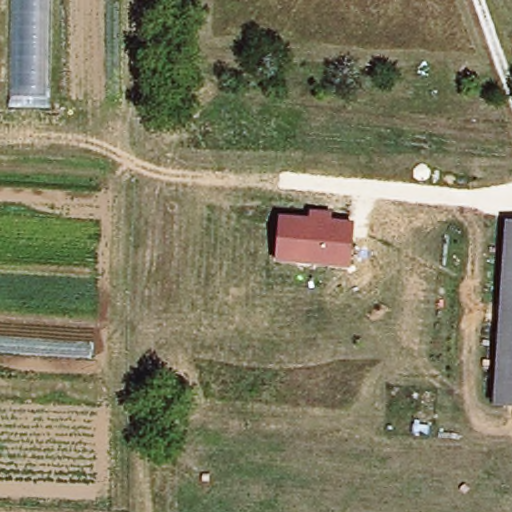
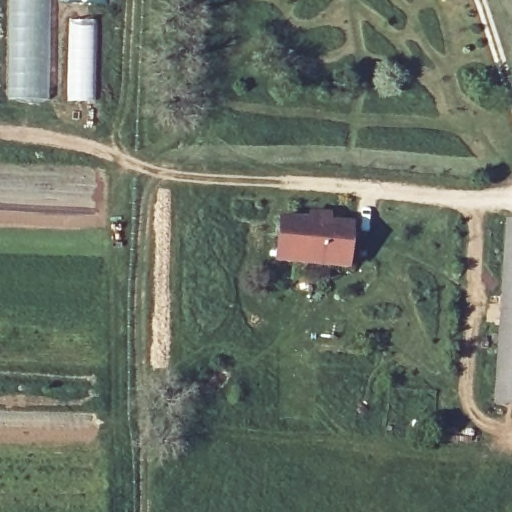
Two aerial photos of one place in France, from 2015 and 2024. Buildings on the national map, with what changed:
unchanged [(49,100),(9,100),(11,0),(50,0),(49,100)]
new [(77,24),(92,24),(92,51),(96,51),(94,101),(77,101),(77,24)]
unchanged [(279,217),(309,220),(310,212),(332,214),(331,222),(354,225),(350,269),(274,262),(279,217)]
unchanged [(494,406),(504,224),(512,224),(512,407),(494,406)]

